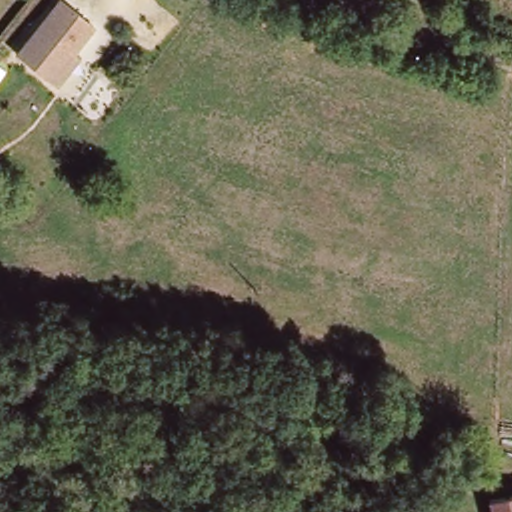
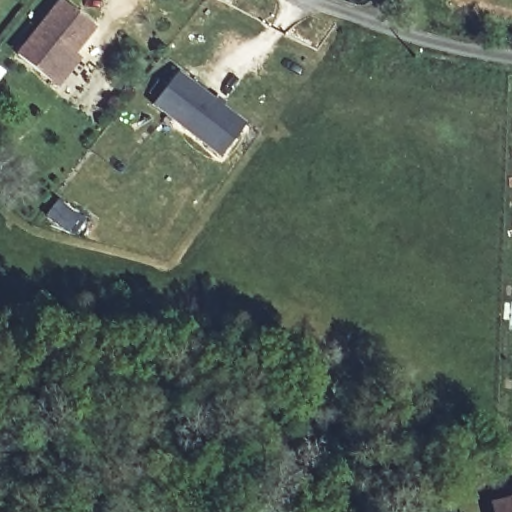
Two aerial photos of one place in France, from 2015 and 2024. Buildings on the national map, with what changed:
unchanged [(58,84),(52,79),(19,54),(60,0),(65,0),(95,25),(75,52),(80,56),(58,84)]
new [(175,72),(245,121),(222,154),(152,105),(175,72)]
new [(60,198),(82,213),(71,230),(48,215),(60,198)]
unchanged [(512,496),(512,512),(494,512),(491,500),(512,496)]

